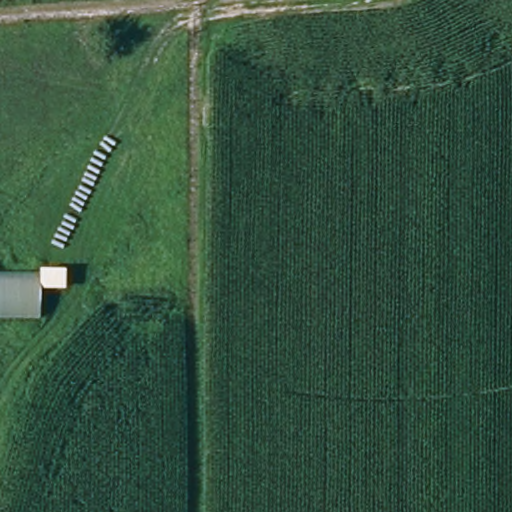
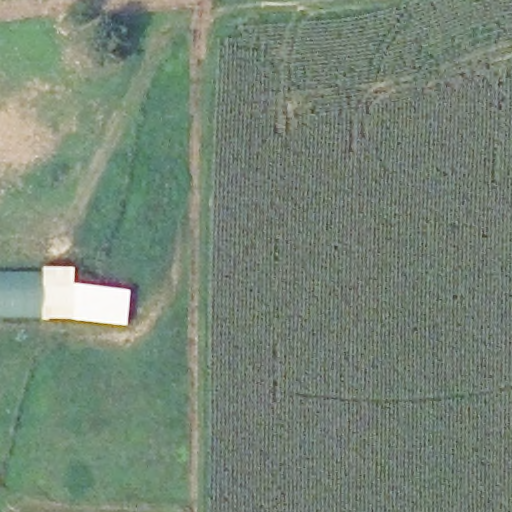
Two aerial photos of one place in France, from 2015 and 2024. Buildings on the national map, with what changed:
unchanged [(63,293),(34,293),(34,319),(0,319),(0,274),(34,274),(34,264),(64,265),(63,293)]
new [(128,292),(124,326),(72,320),(34,319),(34,293),(63,293),(63,283),(128,292)]

